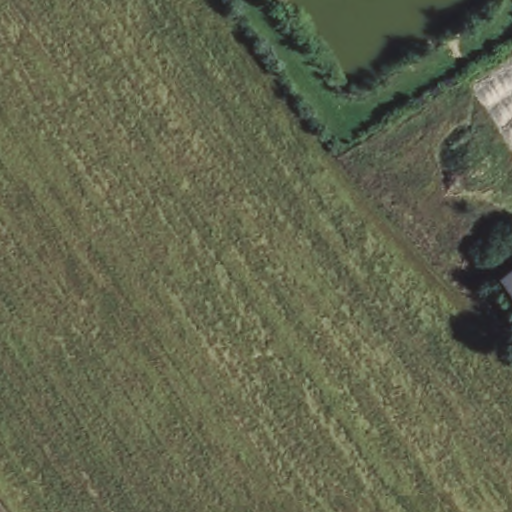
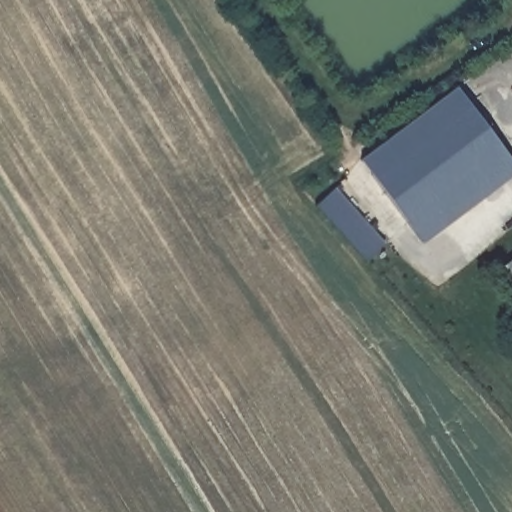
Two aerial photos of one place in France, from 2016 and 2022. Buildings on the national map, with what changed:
new [(512,174),(423,242),(360,160),(455,87),(512,162),(512,174)]
new [(332,169),(382,225),(363,242),(313,185),(332,169)]
unchanged [(512,291),(502,277),(512,269),(512,291)]

